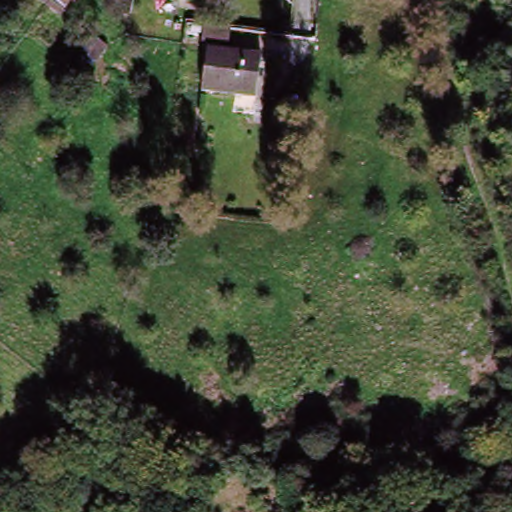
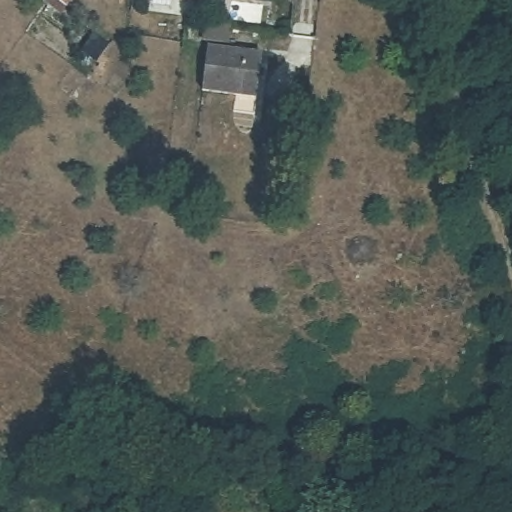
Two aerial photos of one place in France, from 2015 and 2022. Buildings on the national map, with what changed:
unchanged [(33,0),(50,0),(45,9),(33,0)]
unchanged [(74,0),(61,20),(45,9),(50,0),(74,0)]
unchanged [(227,46),(202,43),(204,25),(230,28),(227,46)]
unchanged [(88,71),(74,61),(90,38),(104,48),(88,71)]
unchanged [(200,108),(202,94),(207,49),(263,56),(257,101),(255,116),(200,108)]

